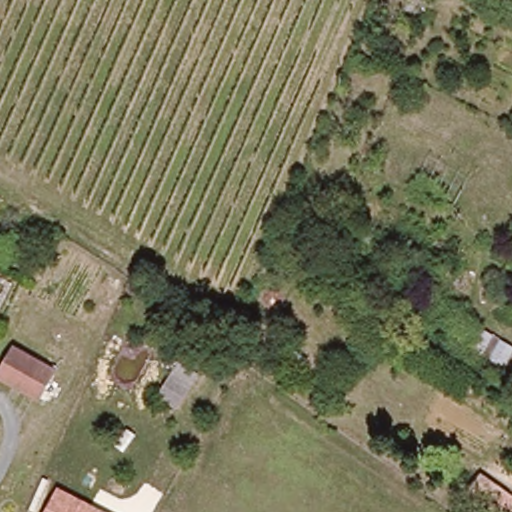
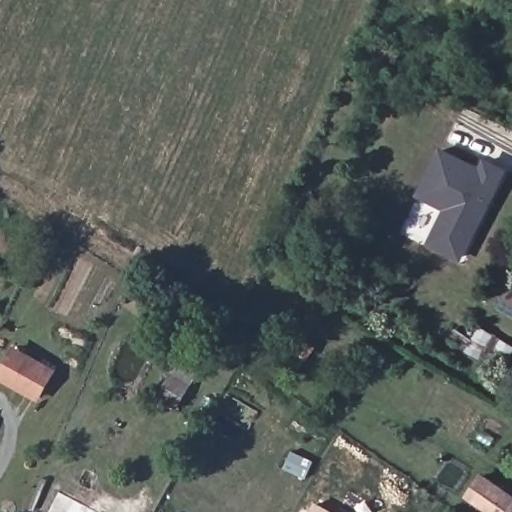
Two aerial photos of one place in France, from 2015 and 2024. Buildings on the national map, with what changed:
new [(462,261),(427,244),(443,210),(415,195),(440,148),(481,168),(485,158),(508,169),(462,261)]
demolished [(373,221),(387,177),(400,184),(420,149),(468,168),(450,213),(487,235),(477,251),(488,257),(475,277),(373,221)]
unchanged [(460,315),(473,323),(459,347),(446,339),(460,315)]
unchanged [(468,352),(482,328),(494,334),(480,358),(468,352)]
unchanged [(492,365),(506,341),(512,344),(512,360),(505,372),(492,365)]
unchanged [(32,393),(0,374),(0,358),(9,344),(47,367),(32,393)]
unchanged [(176,392),(159,382),(172,361),(190,371),(176,392)]
unchanged [(495,512),(467,493),(470,489),(482,472),(512,492),(512,512),(495,512)]
unchanged [(106,512),(44,512),(57,487),(106,512)]
new [(334,512),(309,512),(315,502),(334,512)]

